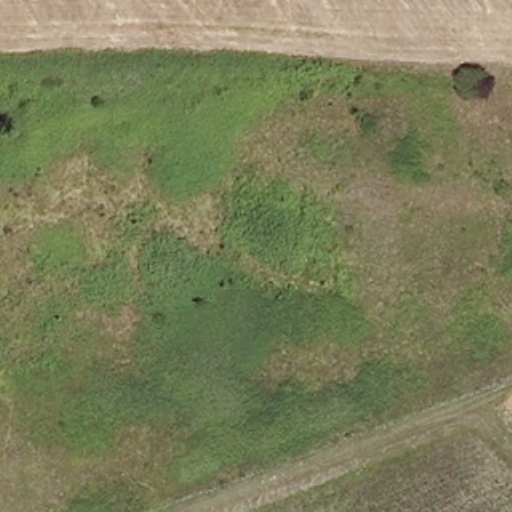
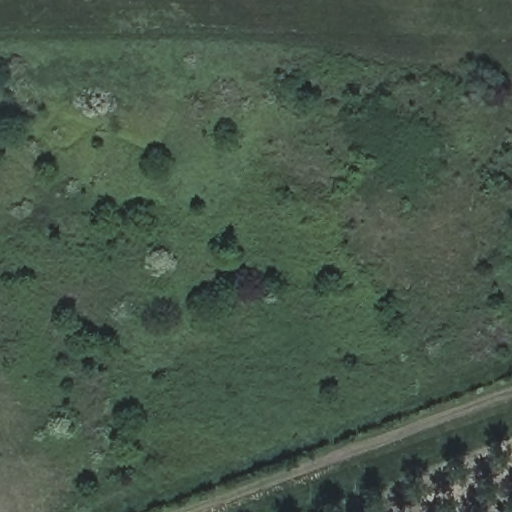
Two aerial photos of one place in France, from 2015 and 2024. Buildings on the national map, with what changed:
unchanged [(7,128),(0,128),(0,95),(6,95),(7,128)]

